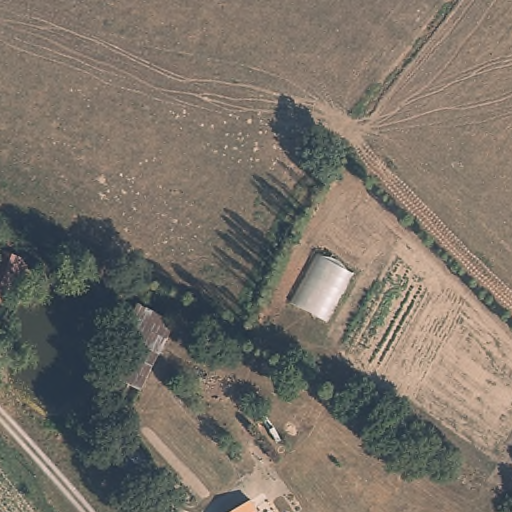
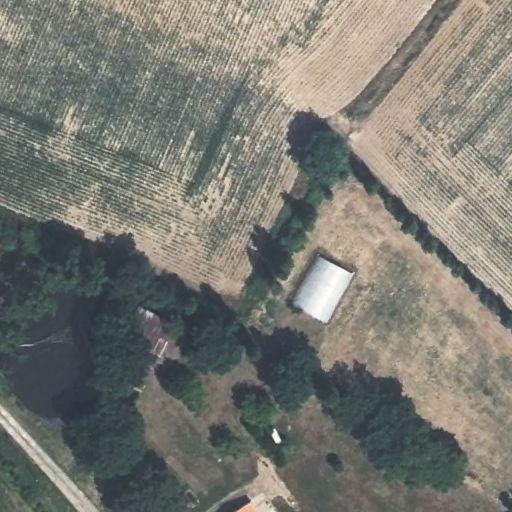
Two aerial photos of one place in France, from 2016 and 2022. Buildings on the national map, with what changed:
unchanged [(252,502),(258,512),(235,512),(252,502)]

